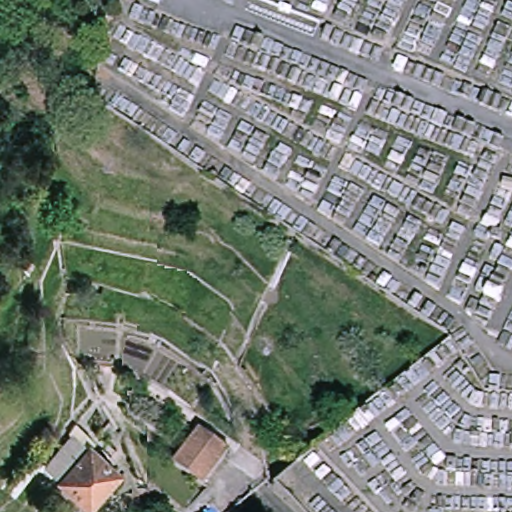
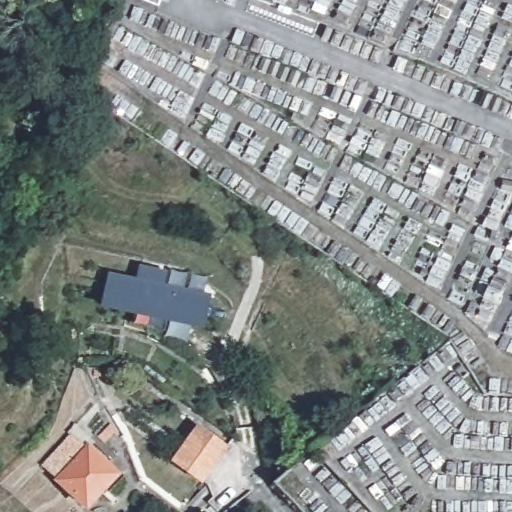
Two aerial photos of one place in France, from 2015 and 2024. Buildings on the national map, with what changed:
new [(213,296),(206,330),(165,321),(164,330),(135,324),(137,315),(101,306),(109,273),(137,278),(140,266),(169,272),(167,285),(213,296)]
unchanged [(172,461),(198,426),(227,446),(201,481),(172,461)]
unchanged [(58,477),(44,462),(71,434),(86,448),(118,473),(88,506),(57,478),(58,477)]

